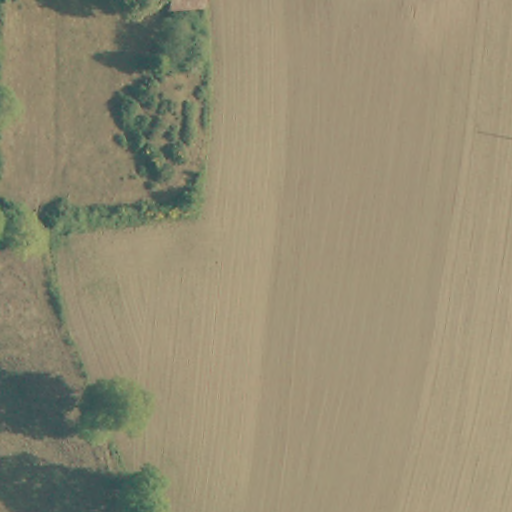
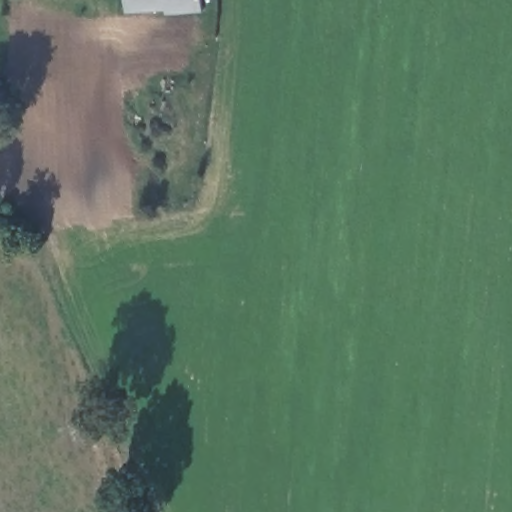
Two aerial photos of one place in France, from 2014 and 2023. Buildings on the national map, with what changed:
new [(202,11),(166,14),(165,9),(126,12),(126,0),(202,0),(202,11)]
demolished [(200,10),(165,9),(165,0),(201,0),(200,10)]

